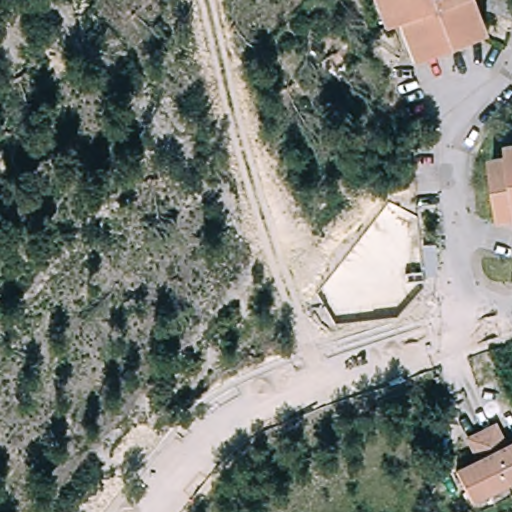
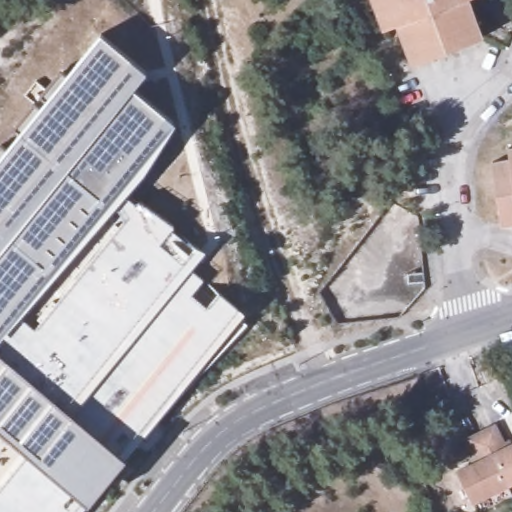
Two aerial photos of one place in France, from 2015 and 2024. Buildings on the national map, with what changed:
unchanged [(474,0),(487,31),(413,61),(398,24),(386,28),(374,0),(474,0)]
new [(133,91),(176,124),(144,177),(125,198),(136,205),(140,202),(176,228),(174,230),(194,247),(196,246),(206,253),(191,271),(204,280),(192,294),(208,307),(219,292),(247,314),(242,321),(126,458),(89,504),(82,512),(0,512),(0,490),(29,455),(0,431),(0,145),(1,144),(6,149),(17,135),(12,131),(34,104),(40,109),(46,101),(40,95),(61,70),(66,74),(102,34),(147,72),(133,91)]
unchanged [(497,224),(487,165),(505,161),(505,153),(512,152),(512,222),(497,224)]
unchanged [(482,436),(495,429),(504,451),(512,447),(512,484),(507,487),(482,436)]
unchanged [(473,505),(457,475),(477,465),(467,443),(482,436),(507,487),(473,505)]

